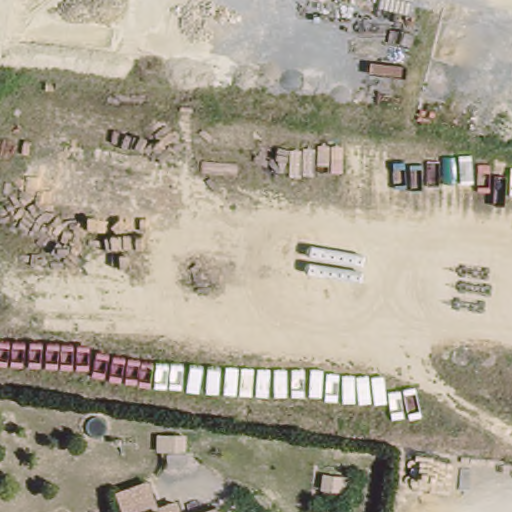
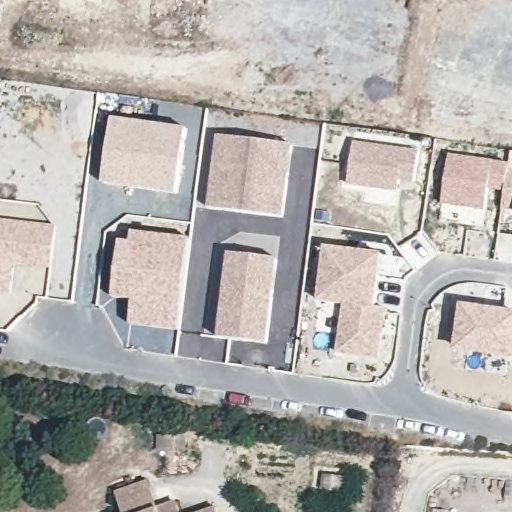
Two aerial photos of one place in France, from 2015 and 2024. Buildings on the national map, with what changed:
new [(111,117),(187,126),(177,195),(101,185),(111,117)]
new [(215,132),(293,144),(284,218),(206,210),(215,132)]
new [(399,179),(398,190),(349,183),(354,142),(418,152),(415,182),(399,179)]
new [(507,170),(505,192),(489,190),(487,211),(443,207),(450,154),(508,164),(507,170)]
new [(505,192),(507,170),(512,170),(512,210),(503,208),(505,192)]
new [(16,265),(11,294),(0,292),(0,220),(56,227),(52,268),(16,265)]
new [(118,237),(122,237),(123,234),(125,234),(125,229),(191,237),(180,333),(127,330),(130,302),(111,300),(118,237)]
new [(498,233),(512,235),(512,262),(494,259),(498,233)]
new [(323,246),(382,252),(376,306),(388,308),(380,359),(334,352),(340,305),(316,302),(323,246)]
new [(226,251),(278,258),(268,346),(215,339),(226,251)]
new [(461,303),(512,310),(512,358),(455,352),(461,303)]
new [(321,477),(348,480),(347,496),(319,492),(321,477)]
unchanged [(116,491),(146,482),(156,502),(177,497),(183,512),(124,512),(116,491)]
unchanged [(220,504),(223,512),(191,512),(220,504)]

